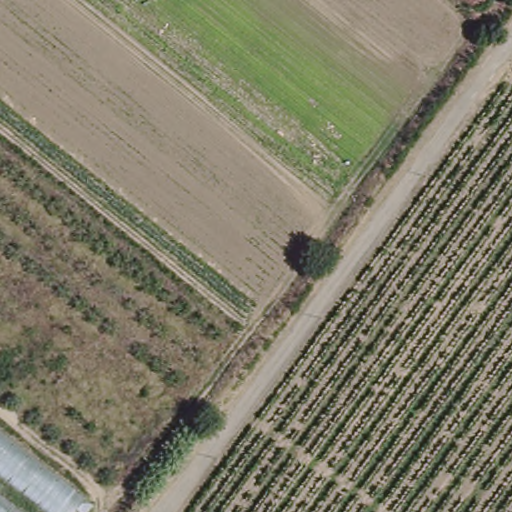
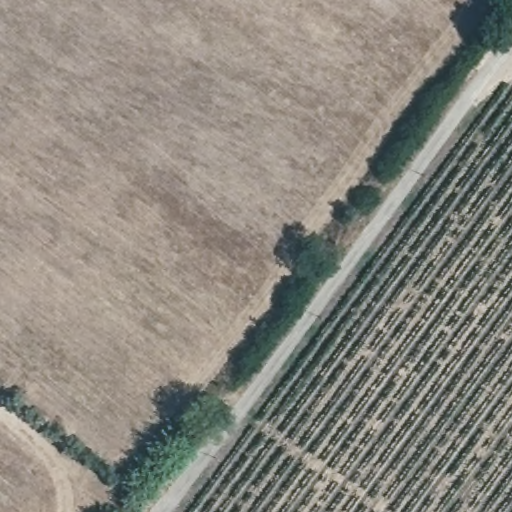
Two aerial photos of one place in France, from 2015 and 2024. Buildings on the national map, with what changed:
demolished [(75,504),(69,512),(0,512),(0,443),(75,504)]

